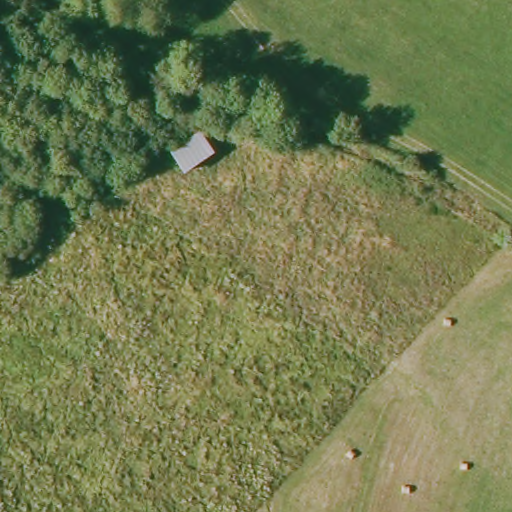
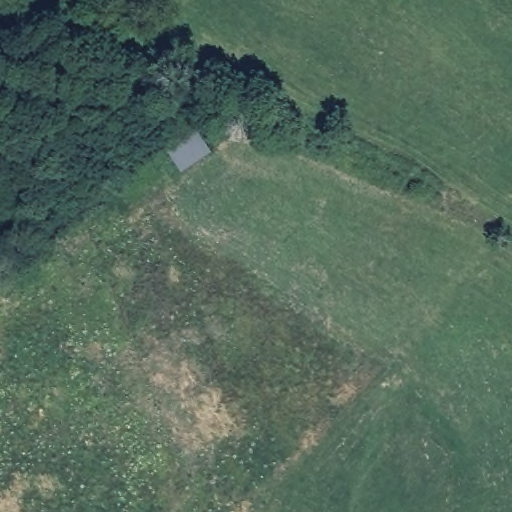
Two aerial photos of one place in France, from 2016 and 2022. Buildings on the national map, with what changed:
unchanged [(171,151),(204,133),(217,151),(185,173),(171,151)]

